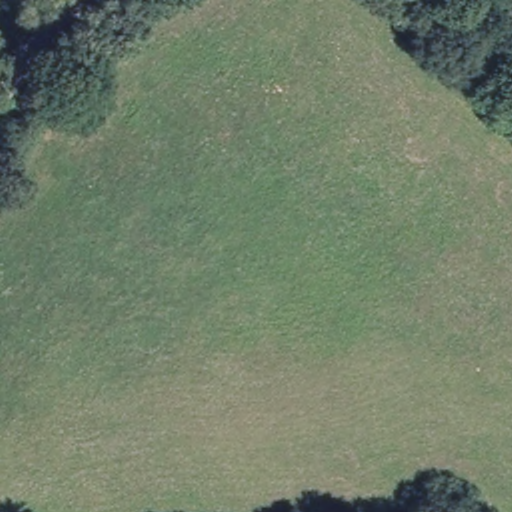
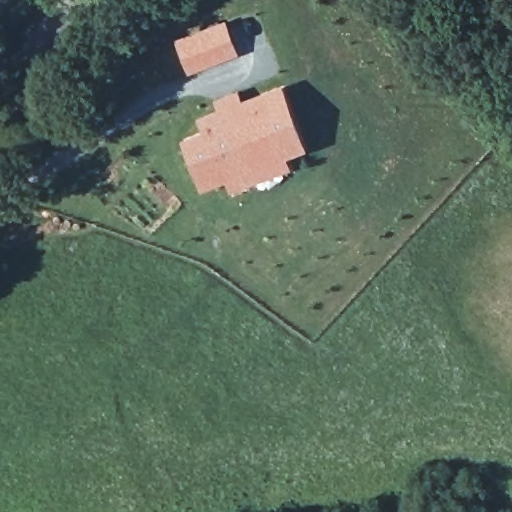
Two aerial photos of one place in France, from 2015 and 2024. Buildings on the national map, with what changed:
new [(241,55),(189,74),(175,40),(228,21),(241,55)]
new [(240,90),(244,100),(285,85),(309,149),(289,158),(294,168),(232,192),(227,180),(203,190),(183,139),(203,131),(198,118),(219,109),(214,100),(240,90)]

